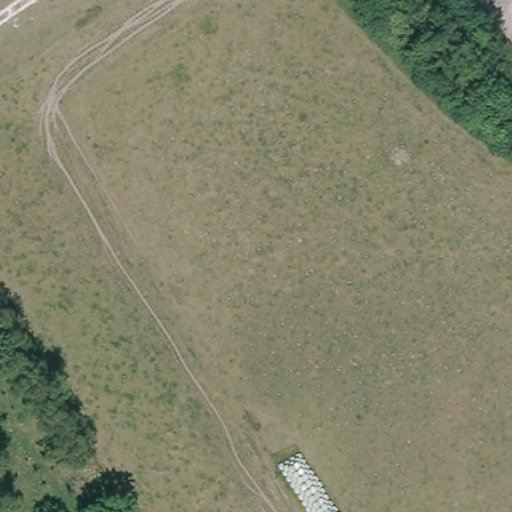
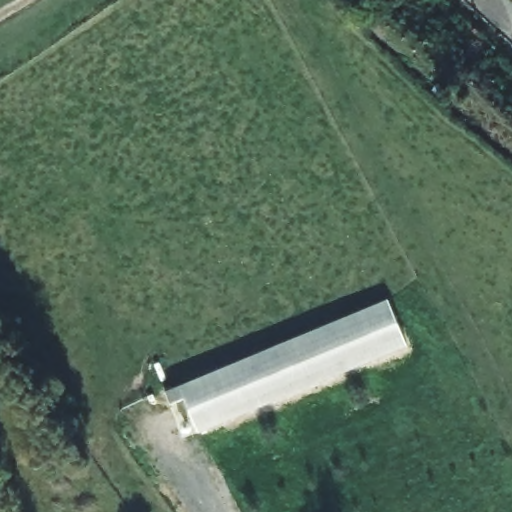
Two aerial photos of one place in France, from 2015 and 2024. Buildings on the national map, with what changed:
new [(200,434),(186,401),(176,406),(170,391),(390,299),(409,347),(200,434)]

